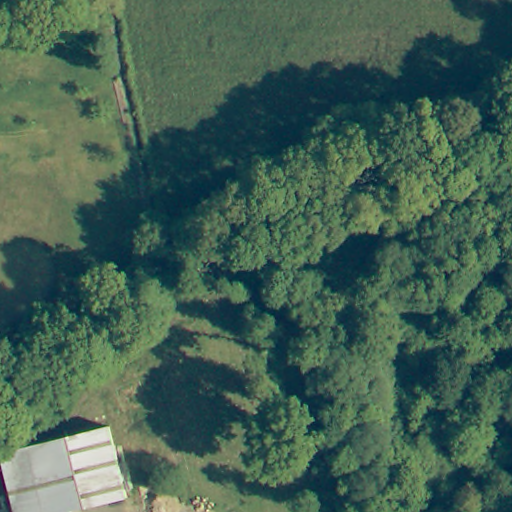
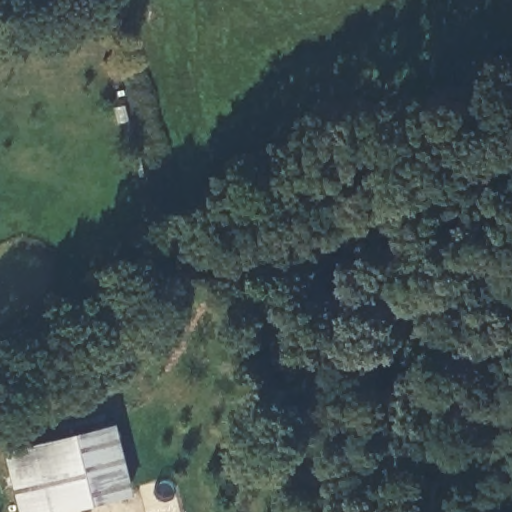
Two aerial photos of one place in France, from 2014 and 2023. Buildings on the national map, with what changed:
unchanged [(12,512),(1,453),(104,431),(118,501),(65,512),(12,512)]

